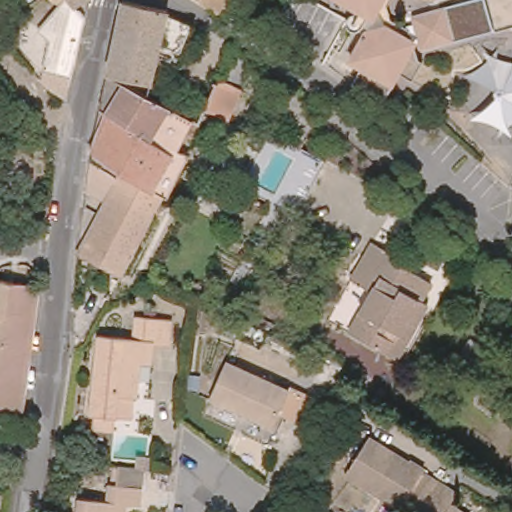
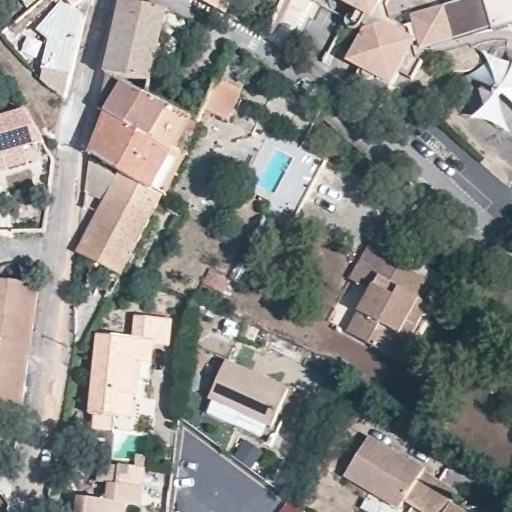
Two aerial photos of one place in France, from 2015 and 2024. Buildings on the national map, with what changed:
unchanged [(36,30),(67,0),(66,0),(77,0),(71,5),(82,16),(79,29),(71,73),(45,68),(50,38),(36,30)]
unchanged [(37,0),(40,0),(38,1),(37,0)]
unchanged [(138,45),(127,82),(104,70),(118,0),(135,0),(164,8),(163,13),(156,50),(138,45)]
unchanged [(211,0),(232,0),(230,11),(211,0)]
unchanged [(388,17),(410,26),(407,17),(446,5),(459,37),(426,49),(413,80),(398,72),(395,87),(345,60),(358,34),(341,26),(351,7),(341,0),(388,0),(385,4),(388,17)]
unchanged [(486,0),(512,0),(512,24),(497,28),(486,0)]
unchanged [(512,57),(512,119),(503,131),(489,118),(468,116),(470,93),(462,77),(480,69),(486,55),(505,59),(512,57)]
unchanged [(127,84),(192,120),(154,192),(122,174),(125,169),(145,134),(107,113),(97,107),(104,70),(127,82),(127,84)]
unchanged [(244,86),(231,120),(206,110),(220,76),(244,86)]
new [(26,108),(45,157),(0,171),(0,116),(26,108)]
unchanged [(145,134),(125,169),(90,150),(90,147),(107,113),(145,134)]
unchanged [(90,155),(122,174),(154,192),(165,197),(123,273),(82,250),(108,201),(87,189),(90,155)]
unchanged [(325,175),(296,234),(273,222),(301,165),(325,175)]
unchanged [(277,211),(252,198),(256,191),(280,203),(277,211)]
unchanged [(398,359),(387,352),(349,327),(372,290),(350,278),(373,238),(395,252),(390,257),(420,276),(432,284),(422,300),(429,305),(417,324),(420,326),(398,359)]
unchanged [(0,408),(0,275),(43,279),(27,412),(0,408)]
unchanged [(90,435),(91,422),(99,339),(132,343),(136,319),(170,323),(167,350),(153,348),(150,369),(141,369),(141,379),(137,406),(118,404),(116,425),(115,437),(90,435)]
unchanged [(292,386),(276,422),(212,396),(229,358),(292,386)]
unchanged [(423,508),(405,497),(402,503),(347,466),(373,428),(395,442),(393,445),(412,458),(415,453),(429,462),(427,466),(444,477),(423,508)]
unchanged [(77,491),(107,493),(109,476),(116,476),(118,455),(135,457),(143,457),(141,478),(139,502),(128,502),(127,512),(75,512),(77,491)]
unchanged [(460,488),(452,501),(471,512),(428,512),(423,508),(444,477),(460,488)]

